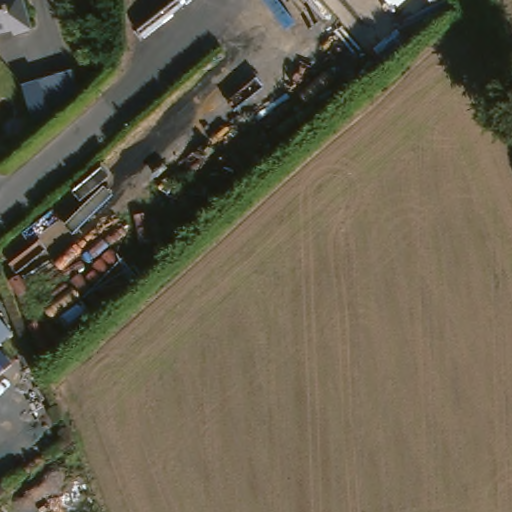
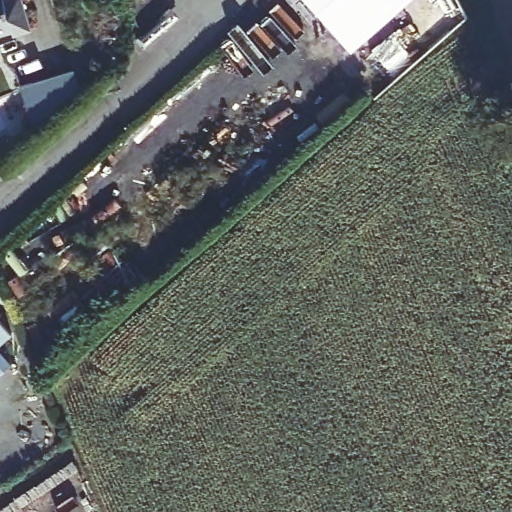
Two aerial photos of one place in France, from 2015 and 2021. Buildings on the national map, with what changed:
unchanged [(16,31),(14,27),(0,31),(0,0),(26,0),(34,27),(16,31)]
new [(351,48),(308,0),(384,0),(395,12),(351,48)]
unchanged [(384,0),(409,0),(395,12),(384,0)]
unchanged [(76,102),(46,111),(49,121),(34,125),(23,90),(69,75),(76,102)]
unchanged [(17,329),(0,344),(0,309),(17,329)]

